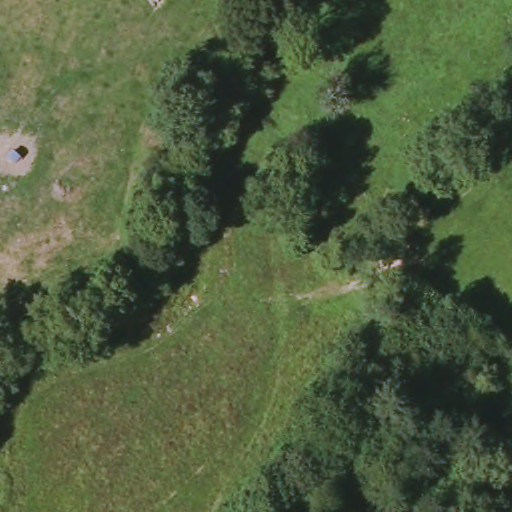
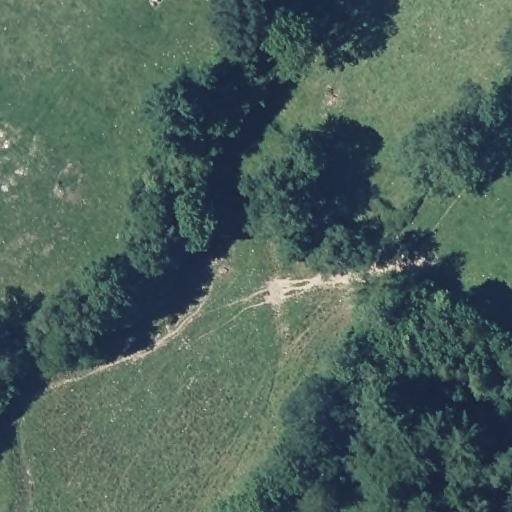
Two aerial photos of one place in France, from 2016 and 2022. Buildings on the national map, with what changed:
[]

